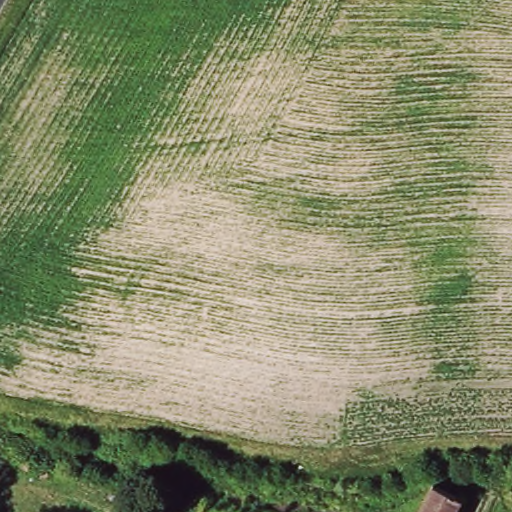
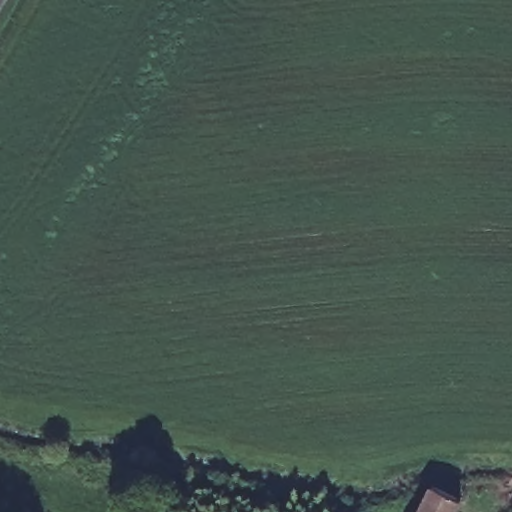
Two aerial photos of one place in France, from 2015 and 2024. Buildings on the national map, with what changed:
unchanged [(424,483),(455,497),(447,512),(410,512),(424,483)]

